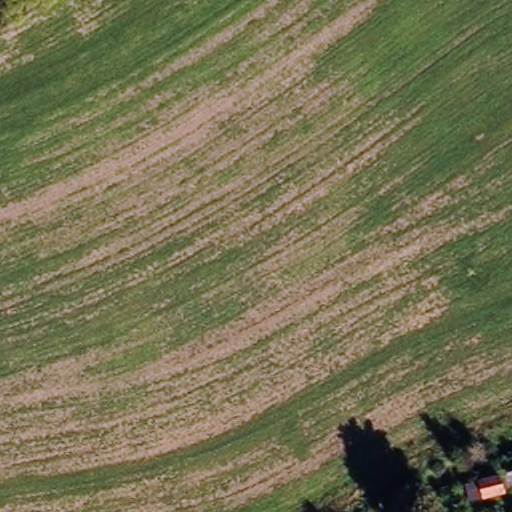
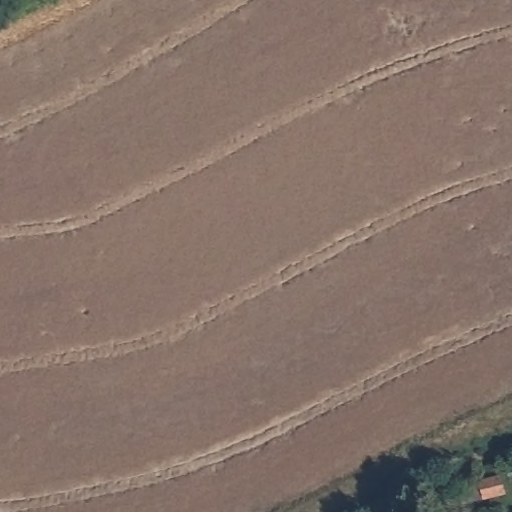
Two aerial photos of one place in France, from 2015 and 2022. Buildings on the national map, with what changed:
unchanged [(507,481),(510,495),(475,503),(472,490),(507,481)]

